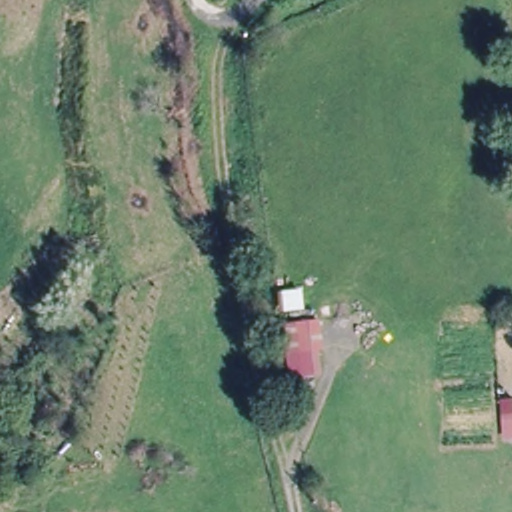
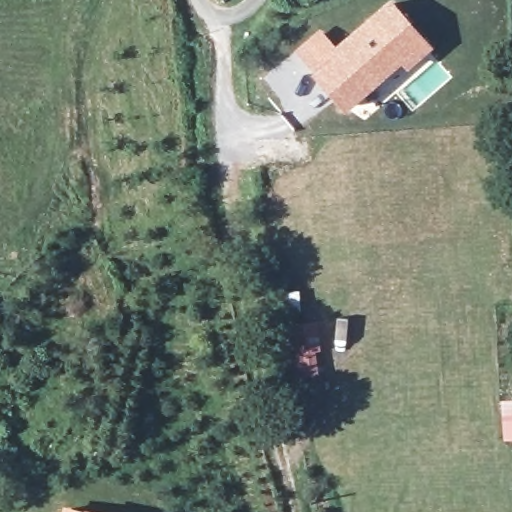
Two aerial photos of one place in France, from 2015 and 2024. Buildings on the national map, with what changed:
new [(321,27),(337,44),(390,0),(395,0),(435,47),(408,71),(403,65),(347,113),(294,50),(321,27)]
new [(322,350),(316,351),(319,373),(285,377),(278,325),(319,319),(322,350)]
new [(63,512),(64,505),(87,512),(63,512)]
new [(103,512),(87,512),(87,508),(103,512)]

